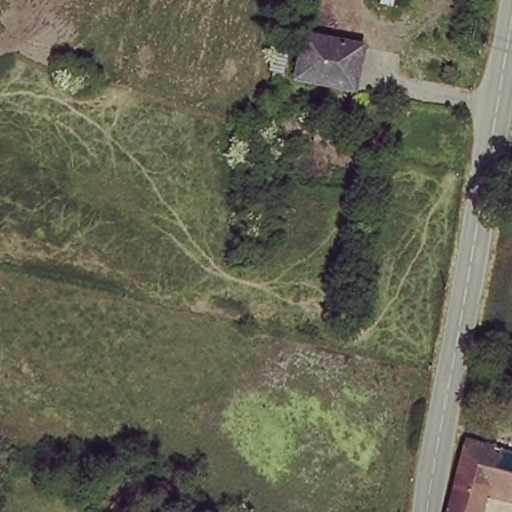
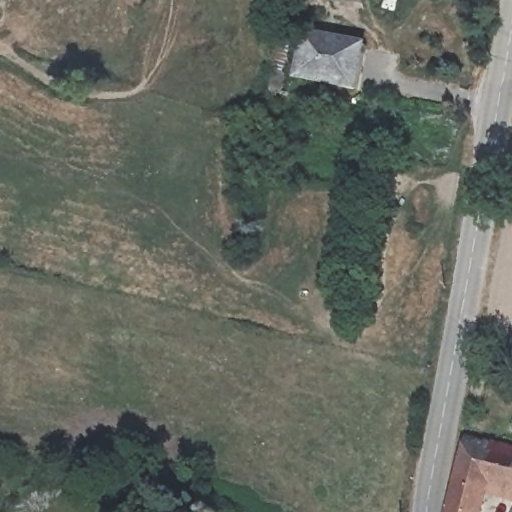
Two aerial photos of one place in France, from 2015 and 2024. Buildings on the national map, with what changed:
unchanged [(305,32),(362,45),(354,87),(298,76),(305,32)]
unchanged [(484,512),(453,512),(454,509),(469,445),(470,438),(508,450),(512,451),(512,506),(487,500),(484,512)]

